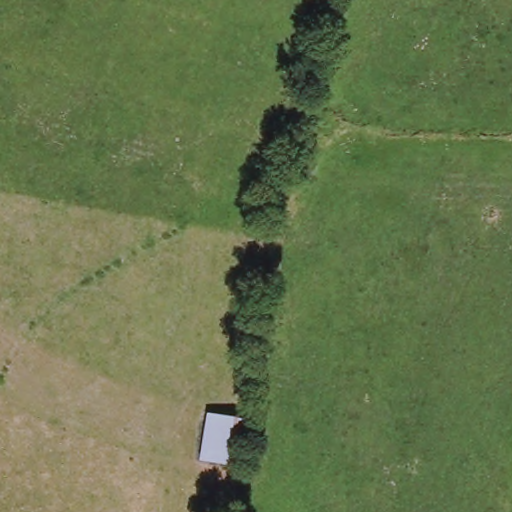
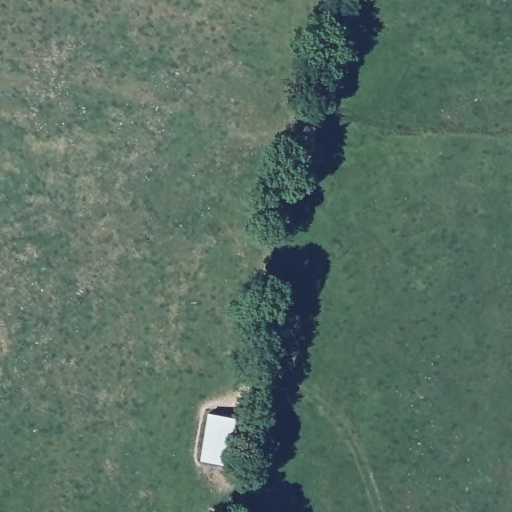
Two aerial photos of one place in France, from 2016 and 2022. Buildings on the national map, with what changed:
unchanged [(251,420),(247,467),(202,461),(209,412),(251,420)]

